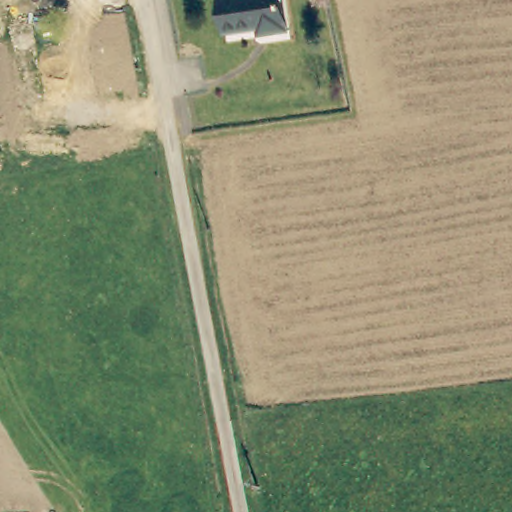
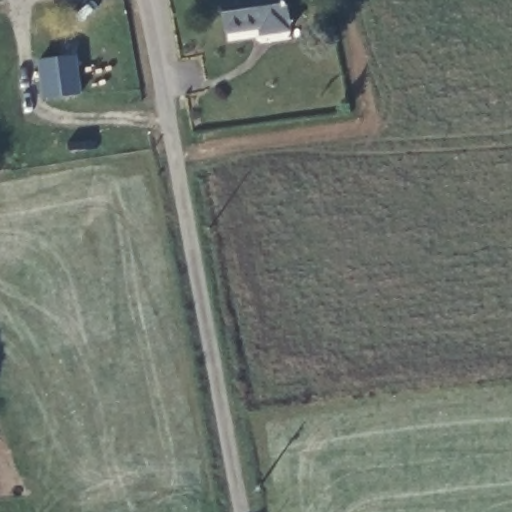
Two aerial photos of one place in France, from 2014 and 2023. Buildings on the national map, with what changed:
unchanged [(263,34),(263,29),(225,33),(221,0),(285,0),(289,31),(263,34)]
new [(81,96),(43,100),(39,60),(78,55),(81,96)]

